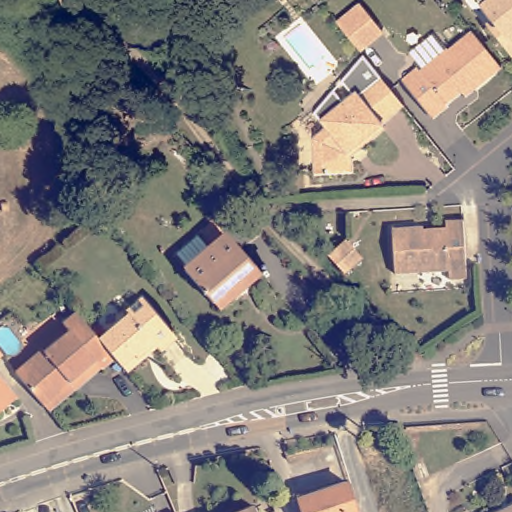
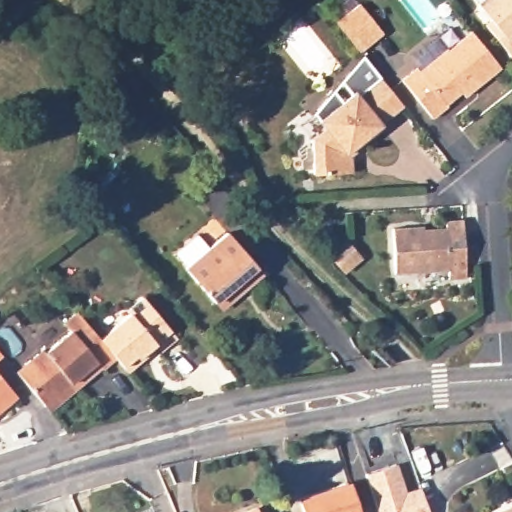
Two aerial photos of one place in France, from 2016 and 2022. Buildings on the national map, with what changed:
unchanged [(284,0),(288,0),(285,2),(284,0)]
unchanged [(484,28),(490,23),(480,10),(475,6),(482,0),(512,0),(512,61),(484,28)]
unchanged [(340,30),(336,24),(359,5),(381,32),(358,51),(340,30)]
unchanged [(459,91),(445,103),(446,105),(431,117),(401,80),(418,66),(420,68),(445,48),(447,49),(471,30),(501,66),(474,88),(464,96),(459,91)]
unchanged [(346,175),(308,177),(307,144),(318,135),(312,128),(333,111),(350,98),(352,101),(374,82),(397,111),(375,128),(379,132),(360,148),(346,159),(346,175)]
unchanged [(460,229),(465,285),(446,287),(445,280),(392,283),(390,239),(420,236),(420,238),(443,238),(442,230),(460,229)]
unchanged [(223,310),(193,275),(195,273),(184,259),(206,241),(217,254),(234,238),(271,280),(257,292),(230,315),(223,310)]
unchanged [(347,241),(362,257),(346,272),(332,256),(347,241)]
unchanged [(130,373),(121,364),(103,341),(134,318),(130,313),(146,301),(181,342),(165,356),(162,353),(132,376),(130,373)]
unchanged [(47,355),(50,356),(76,335),(70,327),(82,317),(103,341),(121,364),(109,375),(107,374),(55,416),(21,376),(47,355)]
unchanged [(0,361),(0,357),(2,359),(0,361)]
unchanged [(0,416),(0,377),(19,400),(0,416)]
new [(395,466),(404,495),(421,489),(430,512),(376,512),(365,476),(395,466)]
demolished [(358,481),(375,475),(387,508),(395,506),(397,512),(369,512),(358,481)]
unchanged [(346,484),(357,512),(302,512),(298,500),(346,484)]
unchanged [(260,509),(261,512),(251,512),(260,509)]
unchanged [(512,511),(512,512),(510,512),(512,511)]

